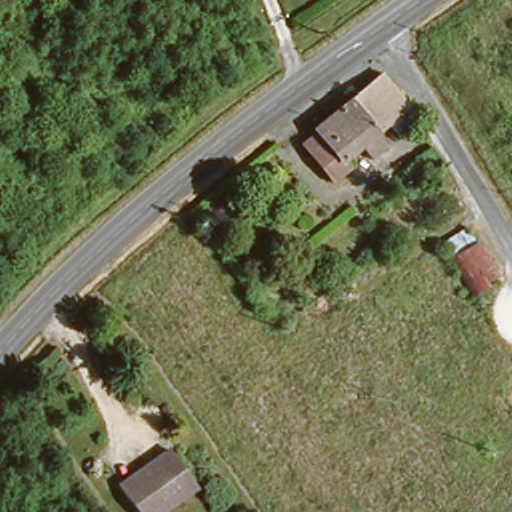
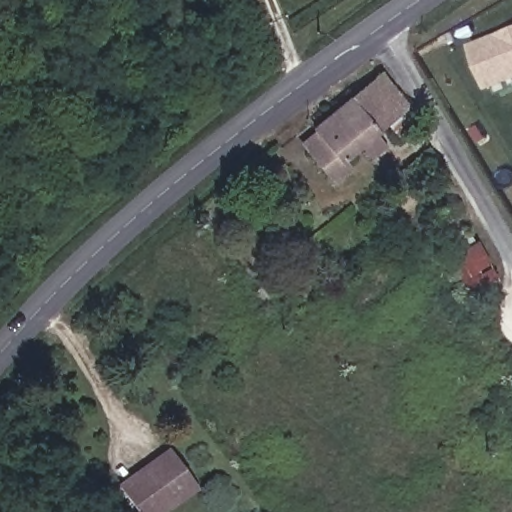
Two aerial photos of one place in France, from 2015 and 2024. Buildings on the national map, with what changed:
new [(468,45),(512,28),(512,80),(486,90),(468,45)]
unchanged [(312,127),(381,75),(411,115),(325,179),(306,154),(295,140),(312,127)]
unchanged [(465,228),(495,279),(466,292),(440,242),(465,228)]
unchanged [(113,485),(125,476),(142,465),(170,446),(195,485),(155,512),(131,512),(118,492),(113,485)]

